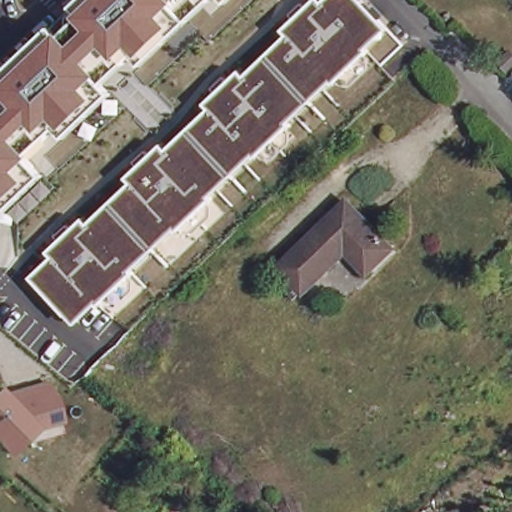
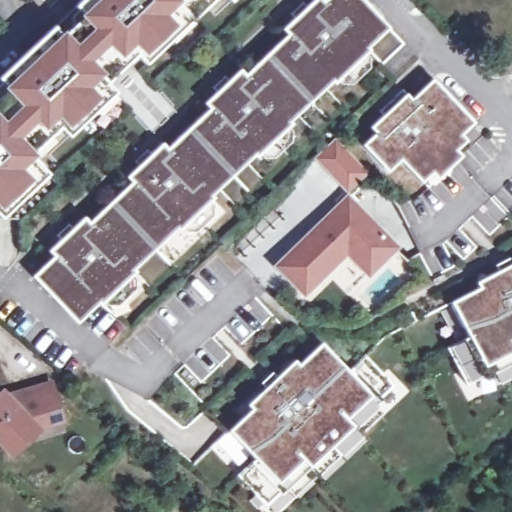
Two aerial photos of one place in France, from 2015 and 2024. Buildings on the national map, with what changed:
unchanged [(144,66),(135,56),(105,83),(113,94),(66,138),(56,128),(32,152),(35,156),(32,160),(45,176),(0,220),(0,75),(73,7),(81,0),(212,0),(144,66)]
unchanged [(32,277),(52,256),(48,252),(82,219),(88,223),(130,183),(126,178),(160,144),(166,150),(208,109),(203,104),(240,71),(244,76),(286,35),(282,30),(314,0),(321,0),(322,2),(325,0),(361,0),(387,29),(367,47),(368,51),(364,56),(368,61),(368,68),(352,85),(345,84),(340,79),(335,84),(332,82),(288,123),(290,125),(286,129),(290,134),(290,142),(273,159),(265,158),(262,153),(255,158),(253,156),(211,196),(212,199),(208,203),(212,208),(211,217),(193,234),(182,233),(180,229),(177,232),(175,229),(132,271),(133,273),(128,278),(133,283),(134,290),(111,309),(105,308),(100,306),(97,303),(77,324),(32,277)]
unchanged [(226,0),(231,0),(228,3),(226,0)]
new [(457,150),(421,184),(394,156),(382,168),(362,147),(375,134),(370,129),(382,117),(378,112),(402,91),(410,101),(432,80),(467,118),(455,130),(465,142),(457,150)]
unchanged [(285,278),(293,270),(285,262),(352,197),(398,244),(379,263),(373,269),(350,246),(310,287),(307,285),(300,293),(285,278)]
new [(450,303),(500,277),(495,266),(507,260),(512,271),(512,362),(491,374),(490,373),(467,385),(447,349),(468,338),(450,303)]
new [(281,384),(322,345),(348,373),(365,357),(395,387),(375,405),(377,406),(304,475),(303,474),(284,493),(228,434),(281,384)]
new [(512,362),(512,377),(497,385),(491,374),(512,362)]
unchanged [(12,460),(0,447),(0,391),(2,390),(7,395),(53,381),(63,425),(40,433),(12,460)]
new [(377,406),(385,416),(313,485),(304,475),(377,406)]
new [(265,505),(237,476),(254,461),(281,490),(265,505)]

